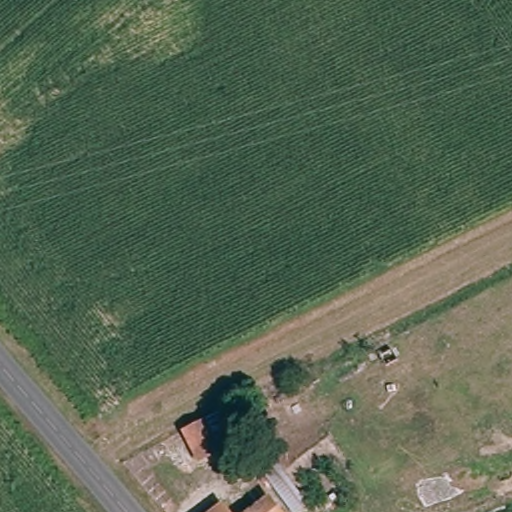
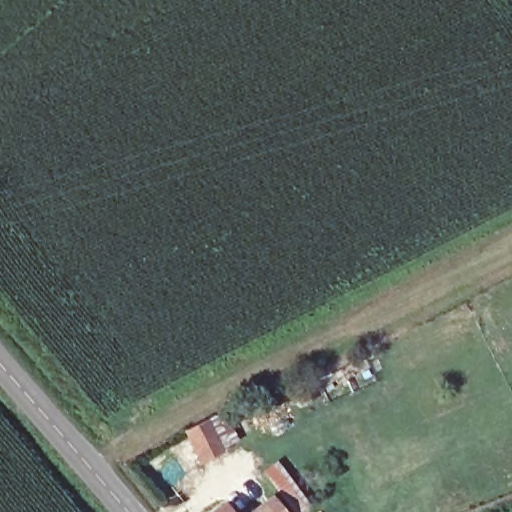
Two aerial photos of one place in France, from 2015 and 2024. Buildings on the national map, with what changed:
unchanged [(214,451),(196,460),(182,433),(184,432),(200,424),(214,451)]
unchanged [(305,501),(294,511),(284,499),(263,474),(275,464),(305,501)]
unchanged [(275,512),(249,512),(265,501),(275,512)]
unchanged [(220,512),(215,512),(218,509),(220,512)]

